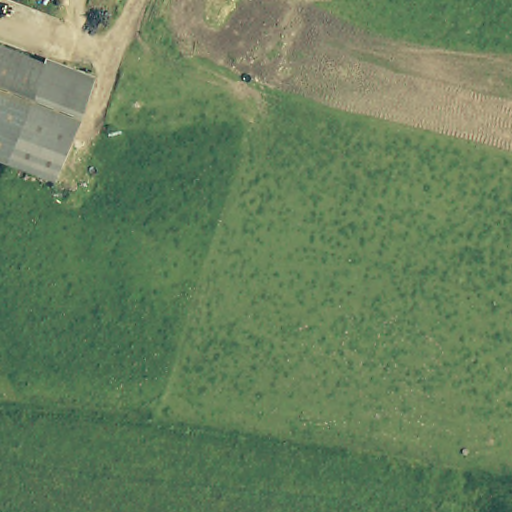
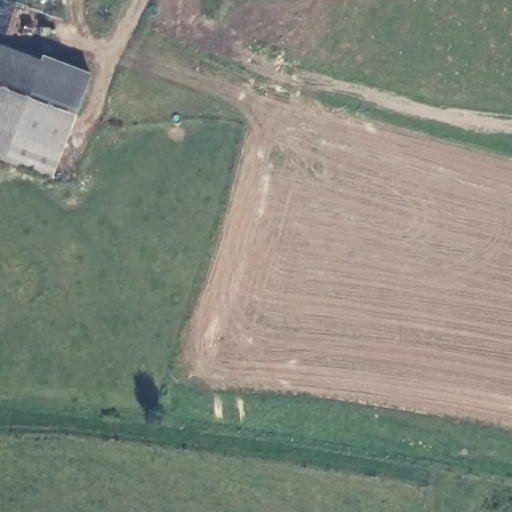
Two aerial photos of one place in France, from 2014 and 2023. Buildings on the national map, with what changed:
unchanged [(8,158),(0,155),(0,46),(42,60),(8,158)]
unchanged [(42,60),(45,53),(95,70),(59,175),(8,158),(42,60)]

